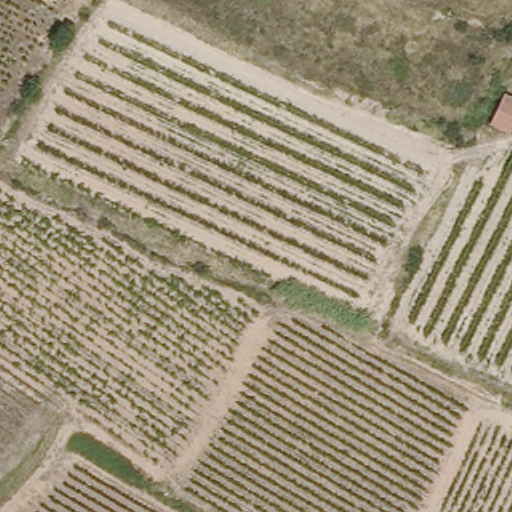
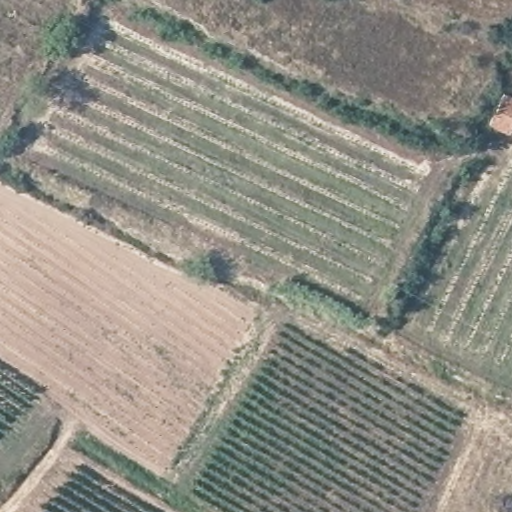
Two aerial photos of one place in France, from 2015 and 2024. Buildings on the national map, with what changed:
unchanged [(512,106),(512,121),(506,133),(490,123),(502,101),(512,106)]

